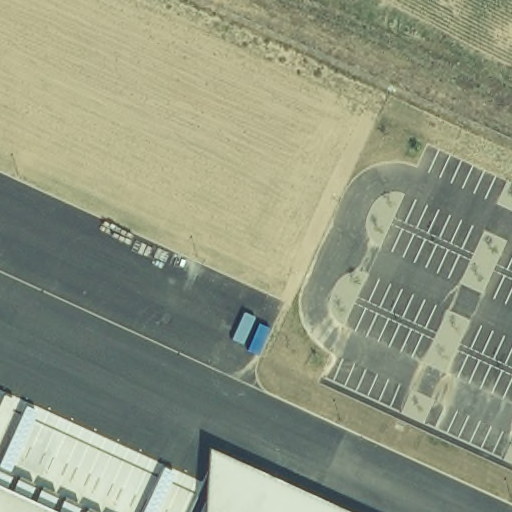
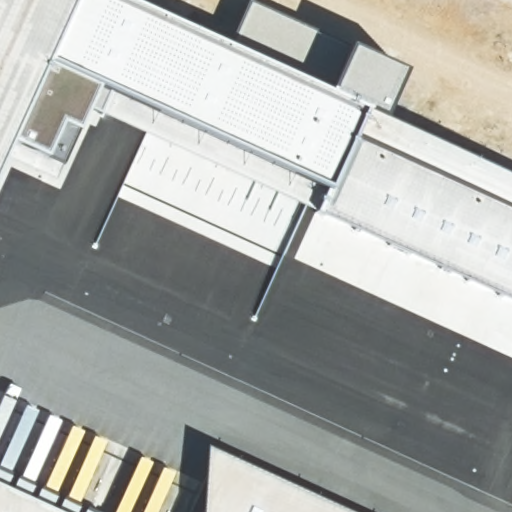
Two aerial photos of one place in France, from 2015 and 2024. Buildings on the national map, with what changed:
new [(242,1),(403,78),(383,125),(364,119),(335,191),(47,61),(0,164),(0,0),(100,0),(225,57),(242,1)]
new [(512,181),(512,300),(318,210),(95,116),(66,174),(6,150),(47,61),(335,191),(364,119),(383,125),(512,181)]
unchanged [(207,448),(346,512),(201,512),(207,448)]
unchanged [(0,473),(86,512),(0,512),(0,473)]

